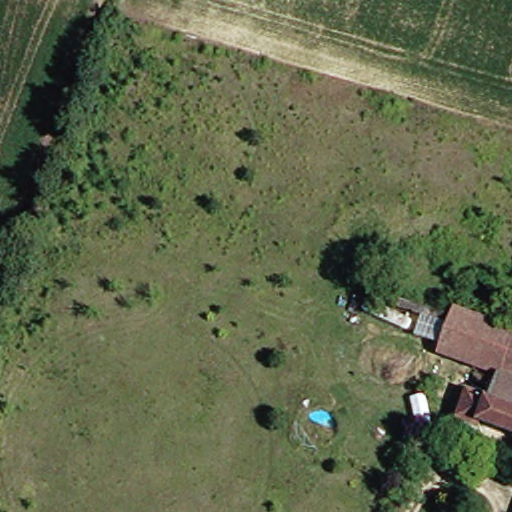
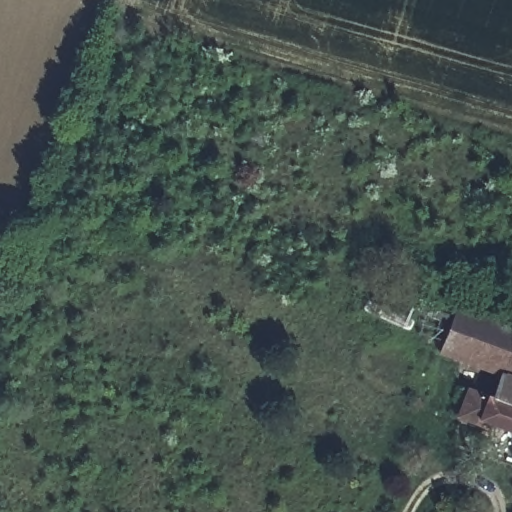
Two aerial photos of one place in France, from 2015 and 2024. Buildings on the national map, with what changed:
unchanged [(447,349),(461,308),(512,325),(512,367),(511,370),(447,349)]
unchanged [(502,398),(511,370),(512,367),(512,423),(495,417),(491,422),(477,418),(470,415),(477,389),(486,393),(502,398)]

